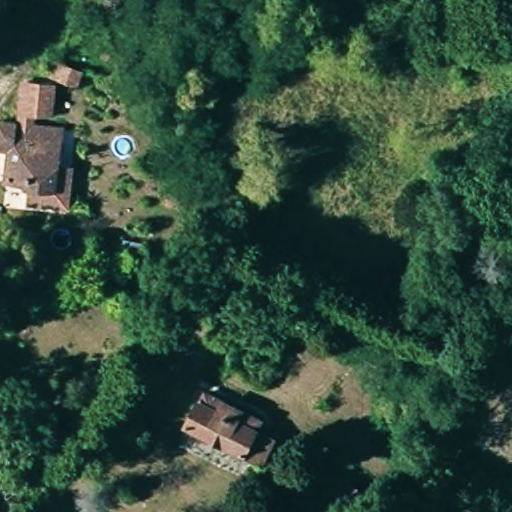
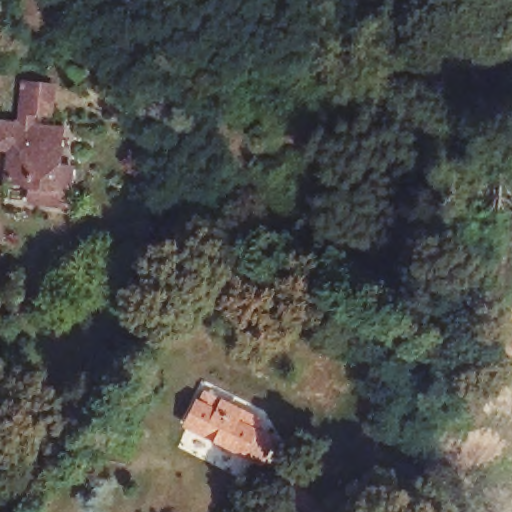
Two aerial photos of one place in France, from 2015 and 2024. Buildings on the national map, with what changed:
unchanged [(27,70),(50,73),(60,74),(60,75),(54,116),(65,117),(65,118),(68,119),(62,156),(59,175),(35,173),(10,170),(11,137),(0,135),(0,108),(5,109),(21,111),(27,70)]
unchanged [(77,159),(73,190),(72,197),(55,195),(32,192),(35,173),(59,175),(62,156),(77,159)]
unchanged [(267,460),(254,454),(246,451),(185,425),(201,389),(261,416),(257,425),(279,435),(267,460)]
unchanged [(357,507),(362,492),(366,483),(373,486),(393,494),(387,509),(385,512),(363,512),(364,509),(357,507)]

